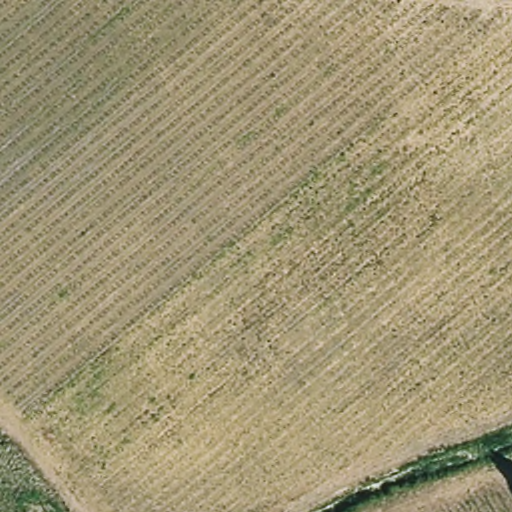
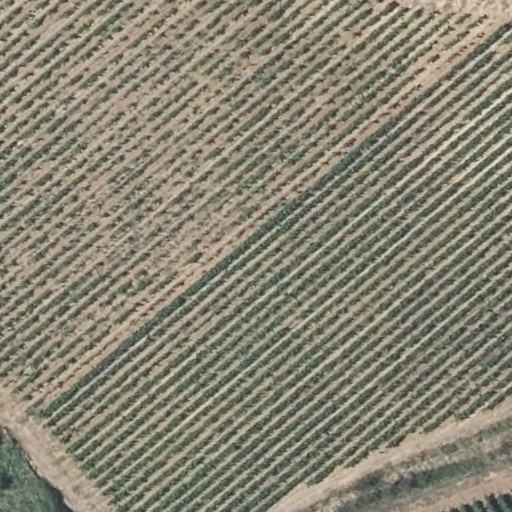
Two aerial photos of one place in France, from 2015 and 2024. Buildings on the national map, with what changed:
[]

